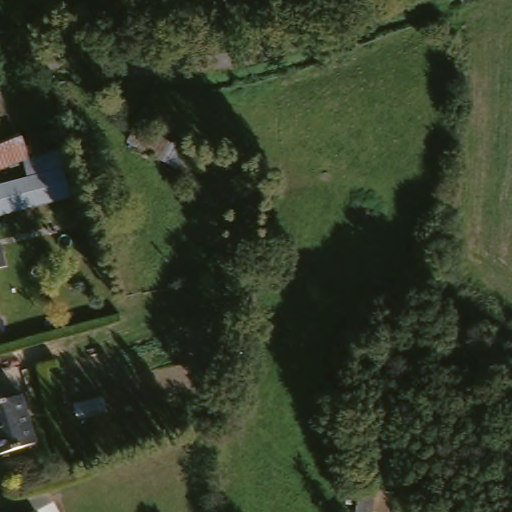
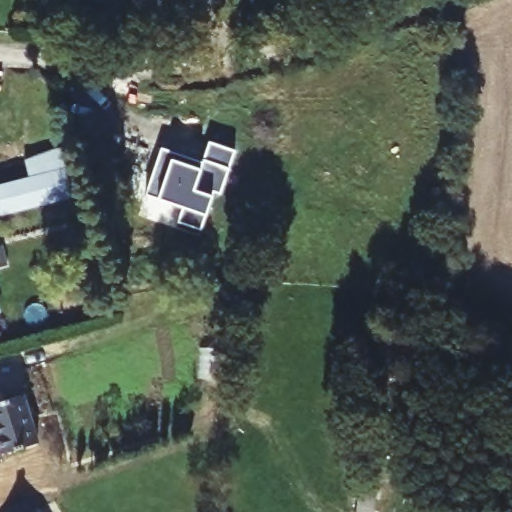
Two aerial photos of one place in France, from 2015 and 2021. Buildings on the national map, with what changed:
unchanged [(35,154),(67,141),(76,171),(0,194),(0,144),(27,134),(35,154)]
new [(190,160),(204,164),(210,144),(236,152),(222,196),(216,194),(204,232),(181,225),(185,211),(148,199),(162,151),(190,160)]
unchanged [(84,195),(6,218),(0,197),(0,194),(76,171),(84,195)]
unchanged [(16,264),(0,268),(0,245),(11,243),(16,264)]
unchanged [(0,289),(5,314),(1,315),(5,332),(0,334),(0,289)]
unchanged [(0,452),(0,451),(0,400),(25,393),(40,441),(0,452)]
unchanged [(28,512),(20,512),(26,509),(28,512)]

